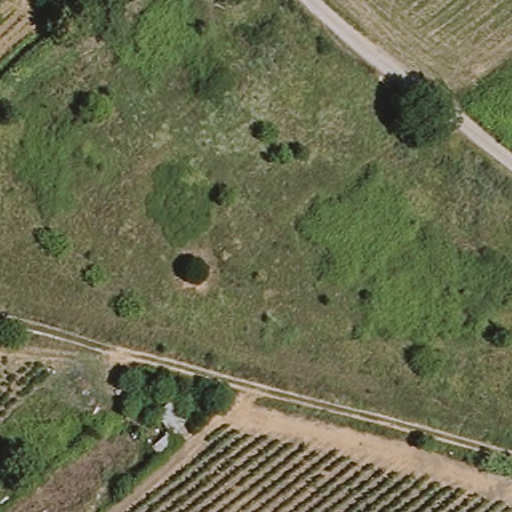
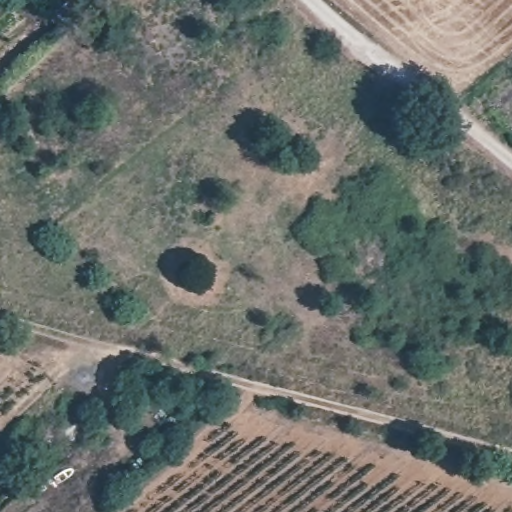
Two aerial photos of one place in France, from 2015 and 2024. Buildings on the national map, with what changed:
unchanged [(150,454),(167,437),(150,418),(171,403),(198,436),(161,465),(150,454)]

